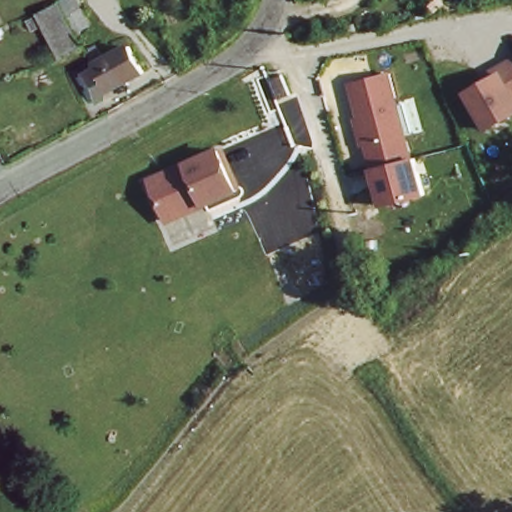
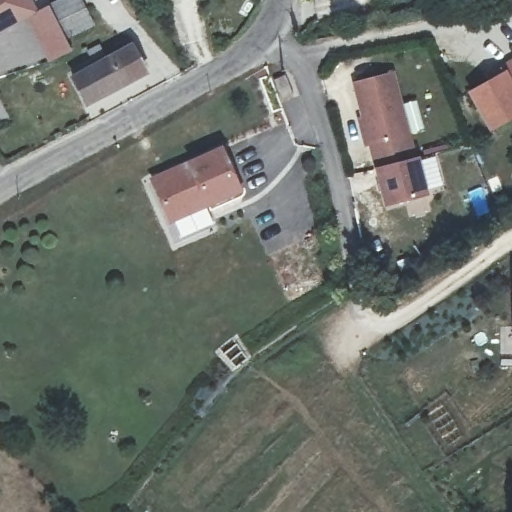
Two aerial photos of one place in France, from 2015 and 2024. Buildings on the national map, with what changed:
new [(0,39),(0,0),(31,0),(40,17),(33,20),(0,39)]
unchanged [(33,20),(40,17),(55,10),(78,0),(81,0),(95,29),(70,40),(78,59),(57,65),(55,65),(33,20)]
unchanged [(133,54),(147,77),(86,110),(74,85),(81,81),(78,75),(91,69),(87,59),(98,54),(105,70),(108,69),(133,54)]
unchanged [(483,74),(512,57),(512,119),(490,132),(467,92),(487,80),(483,74)]
unchanged [(353,83),(396,71),(419,159),(429,195),(383,207),(373,169),(353,83)]
unchanged [(146,177),(217,147),(234,188),(165,218),(146,177)]

